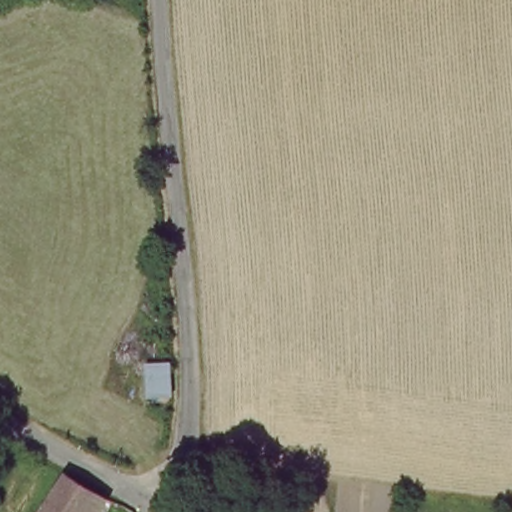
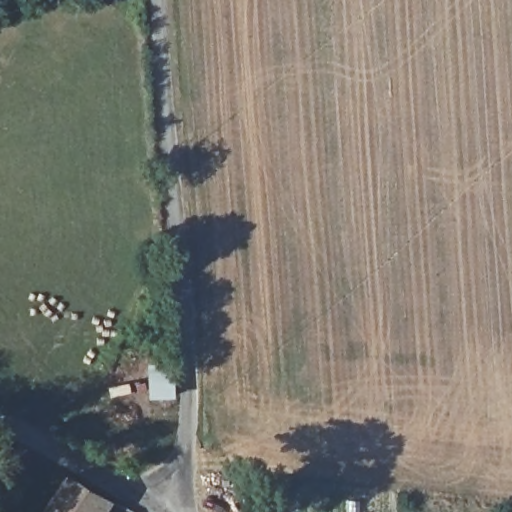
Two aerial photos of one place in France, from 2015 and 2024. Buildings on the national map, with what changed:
unchanged [(66,473),(68,472),(106,495),(106,496),(96,512),(44,512),(66,473)]

